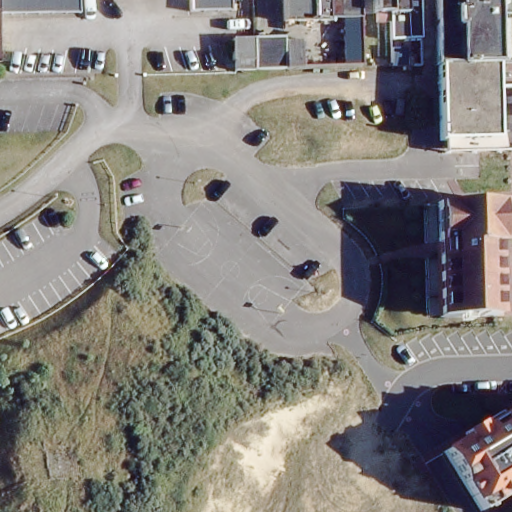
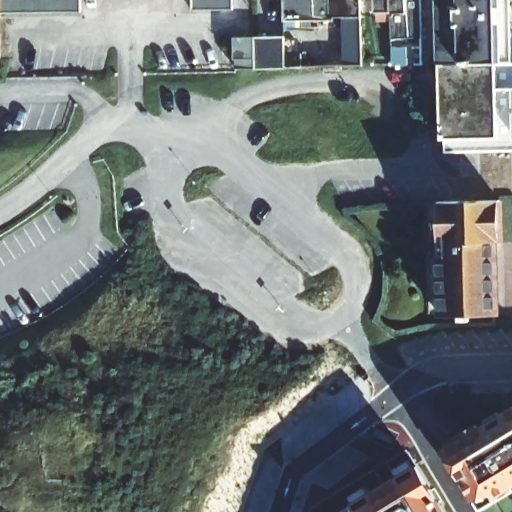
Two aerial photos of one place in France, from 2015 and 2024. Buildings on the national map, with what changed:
unchanged [(71,6),(0,7),(0,0),(71,0),(71,6)]
unchanged [(228,7),(188,7),(188,0),(228,0),(228,7)]
unchanged [(354,14),(324,14),(324,19),(277,19),(277,0),(353,0),(354,14)]
unchanged [(383,6),(366,6),(366,0),(383,0),(383,6)]
unchanged [(414,36),(383,36),(383,20),(383,6),(383,0),(414,0),(414,36)]
unchanged [(489,62),(429,63),(429,0),(489,0),(489,62)]
unchanged [(238,62),(238,38),(256,37),(285,36),(285,68),(258,69),(242,69),(241,62),(238,62)]
unchanged [(489,62),(489,139),(437,140),(430,140),(429,63),(489,62)]
unchanged [(508,138),(507,82),(512,82),(512,138),(508,138)]
unchanged [(498,200),(499,240),(493,240),(494,312),(437,312),(436,201),(498,200)]
unchanged [(485,512),(479,512),(443,455),(512,410),(512,495),(485,512)]
new [(339,512),(417,463),(446,512),(339,512)]

